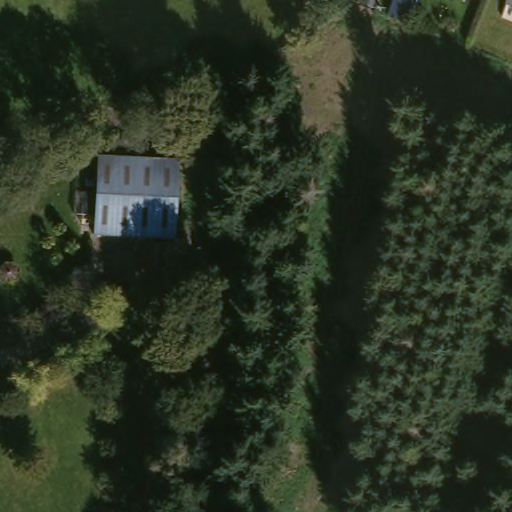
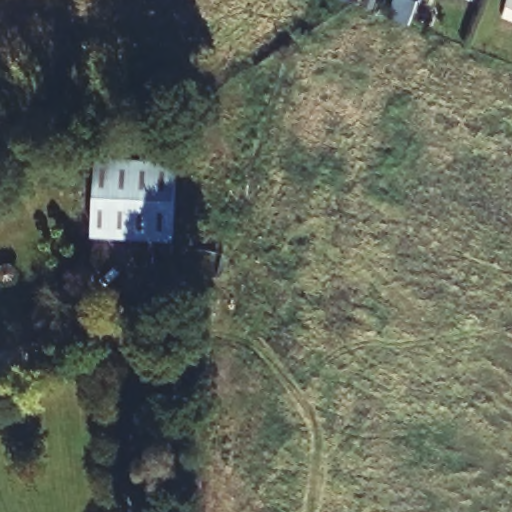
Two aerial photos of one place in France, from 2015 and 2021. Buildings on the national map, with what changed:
unchanged [(469,0),(467,5),(455,0),(469,0)]
unchanged [(504,10),(508,0),(512,0),(512,13),(504,10)]
unchanged [(92,153),(175,155),(173,238),(90,234),(92,153)]

